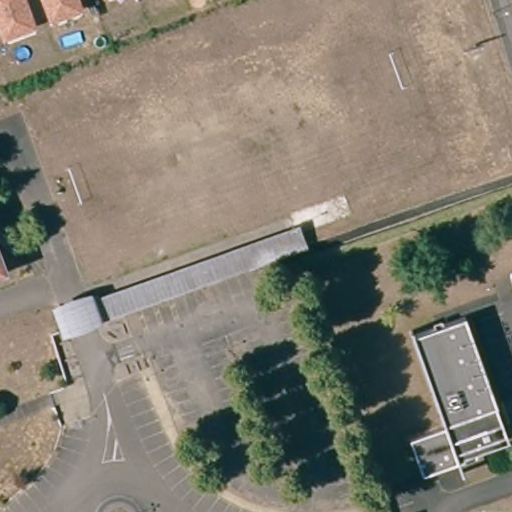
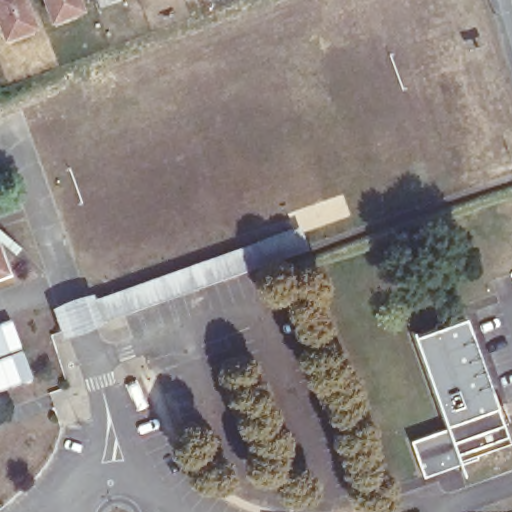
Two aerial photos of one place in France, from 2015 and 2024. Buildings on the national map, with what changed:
unchanged [(37,27),(2,39),(0,32),(0,0),(28,0),(37,27)]
unchanged [(41,0),(82,0),(84,9),(49,23),(41,0)]
unchanged [(112,314),(106,298),(304,229),(309,243),(112,314)]
unchanged [(9,271),(0,274),(0,247),(9,271)]
unchanged [(51,306),(91,292),(103,323),(62,338),(51,306)]
unchanged [(409,434),(443,422),(413,331),(470,312),(500,403),(488,408),(492,423),(502,424),(505,428),(503,434),(499,438),(494,438),(489,438),(483,442),(480,451),(421,470),(409,434)]
new [(10,317),(21,348),(0,356),(0,321),(10,317)]
new [(21,348),(32,378),(0,390),(0,356),(21,348)]

